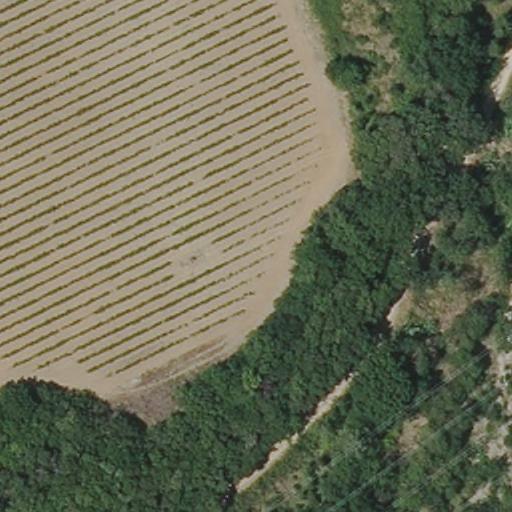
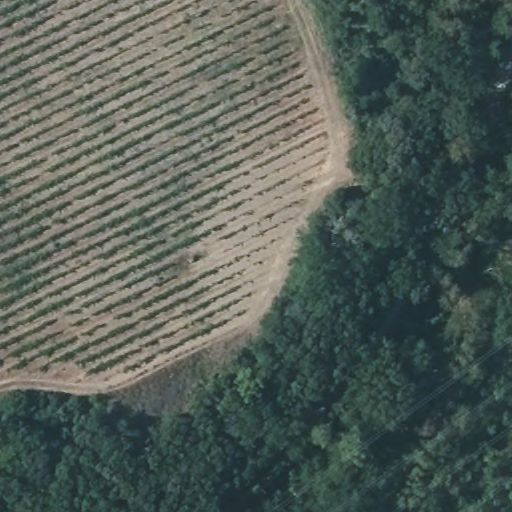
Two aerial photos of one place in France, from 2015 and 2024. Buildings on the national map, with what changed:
[]

